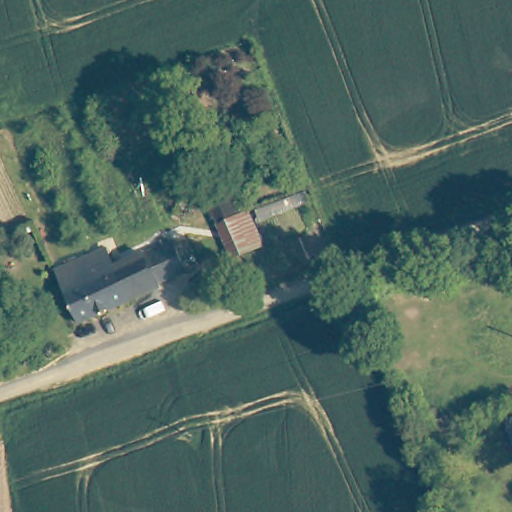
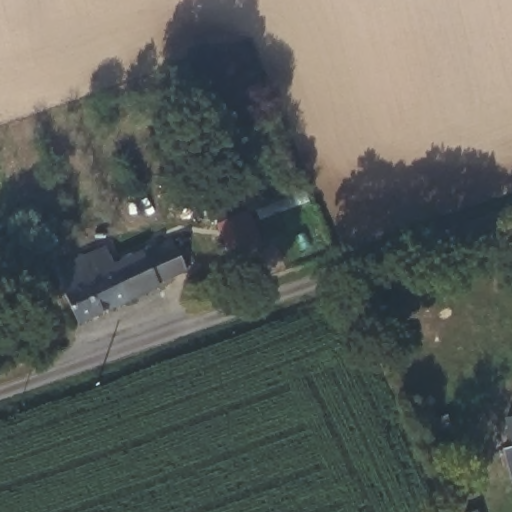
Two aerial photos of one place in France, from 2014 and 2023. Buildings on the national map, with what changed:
unchanged [(210,182),(234,174),(249,207),(247,208),(260,242),(233,253),(220,218),(222,217),(210,182)]
unchanged [(111,263),(140,249),(169,235),(181,265),(150,279),(154,289),(76,322),(54,268),(71,261),(104,247),(111,263)]

